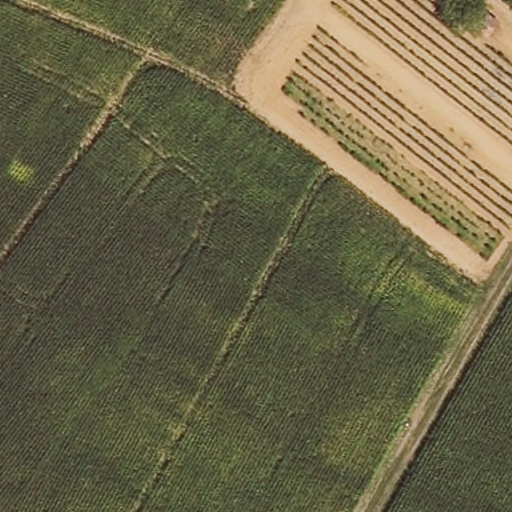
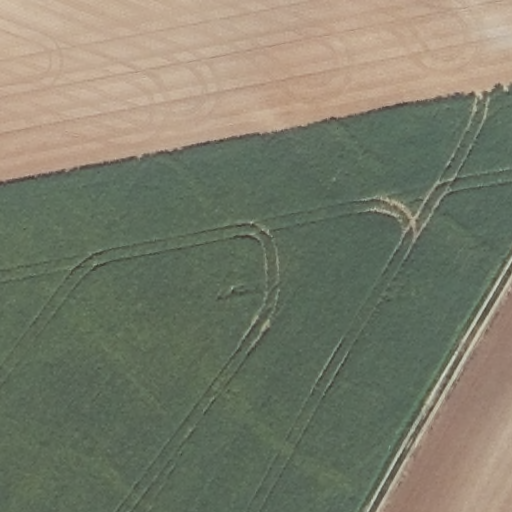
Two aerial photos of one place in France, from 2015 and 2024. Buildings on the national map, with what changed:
unchanged [(470,24),(480,10),(496,21),(486,36),(470,24)]

